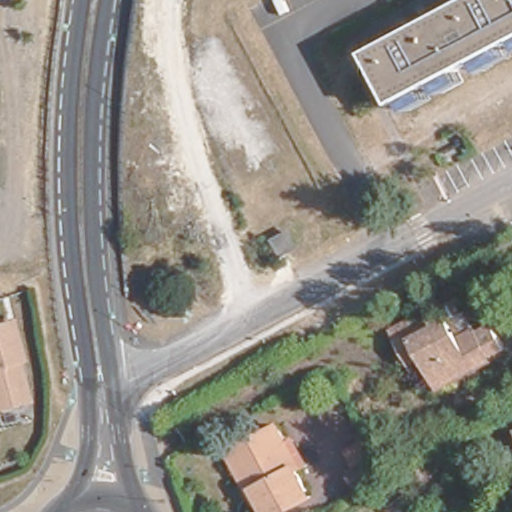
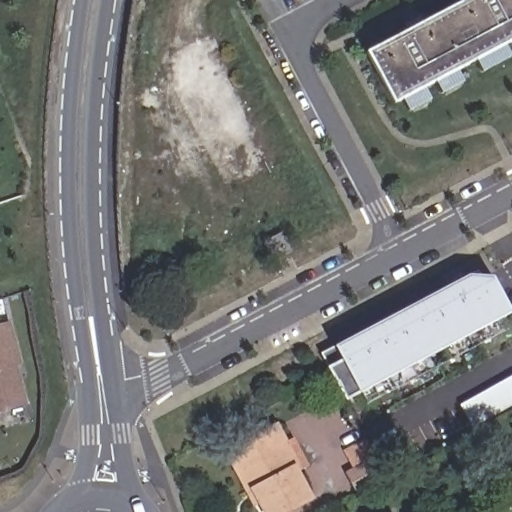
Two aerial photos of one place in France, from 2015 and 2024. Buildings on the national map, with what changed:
unchanged [(512,38),(395,100),(370,53),(469,0),(512,0),(512,38)]
unchanged [(281,232),(291,251),(272,261),(263,242),(281,232)]
new [(345,398),(327,367),(330,366),(335,347),(467,275),(493,276),(510,311),(360,391),(345,398)]
demolished [(487,352),(473,361),(471,357),(454,367),(433,377),(425,362),(423,358),(415,342),(401,349),(389,327),(428,307),(454,292),(464,312),(451,317),(460,333),(473,326),(475,330),(492,321),(507,348),(490,357),(487,352)]
unchanged [(10,322),(22,366),(16,367),(27,407),(0,414),(0,325),(10,322)]
new [(512,407),(473,429),(459,405),(512,375),(512,407)]
unchanged [(235,441),(277,417),(291,442),(297,438),(308,460),(302,462),(297,466),(295,467),(310,492),(271,512),(266,512),(260,498),(255,501),(225,445),(235,441)]
unchanged [(355,496),(342,468),(350,463),(343,447),(362,438),(383,482),(355,496)]
unchanged [(470,512),(447,512),(465,502),(470,512)]

